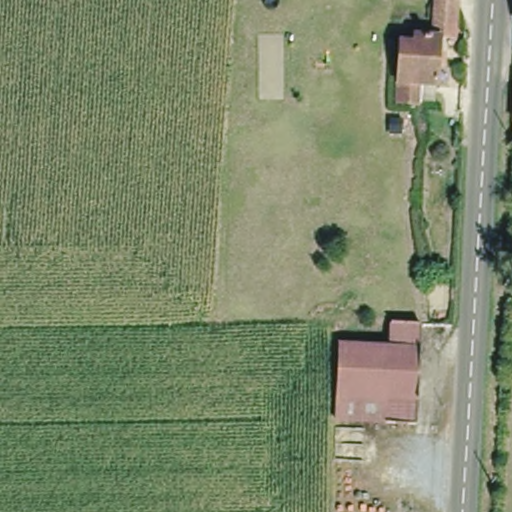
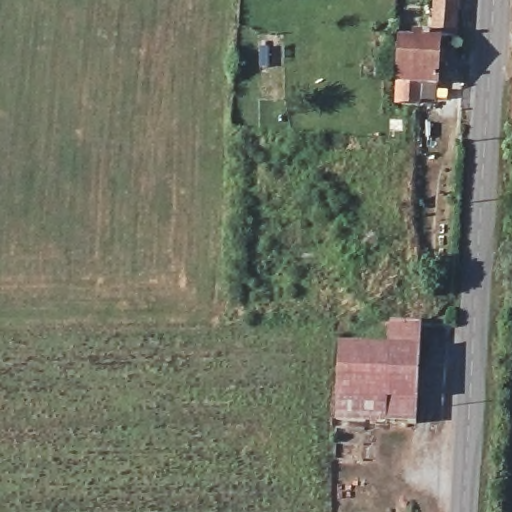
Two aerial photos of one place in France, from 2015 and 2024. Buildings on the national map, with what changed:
unchanged [(433,0),(459,0),(457,33),(430,29),(430,28),(433,0)]
unchanged [(396,72),(399,33),(441,35),(435,99),(395,95),(394,95),(396,72)]
unchanged [(340,342),(388,343),(388,324),(388,323),(417,324),(420,324),(415,423),(335,419),(340,342)]

